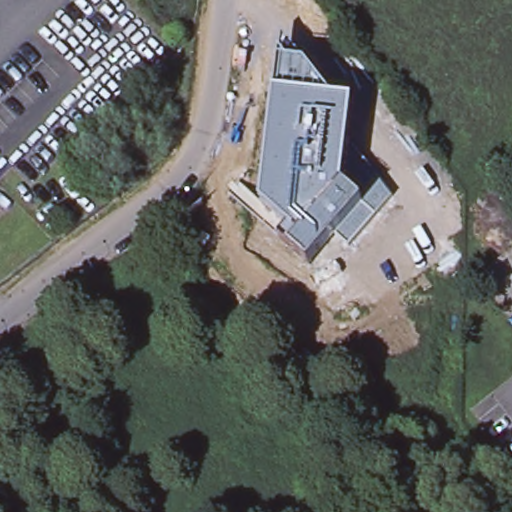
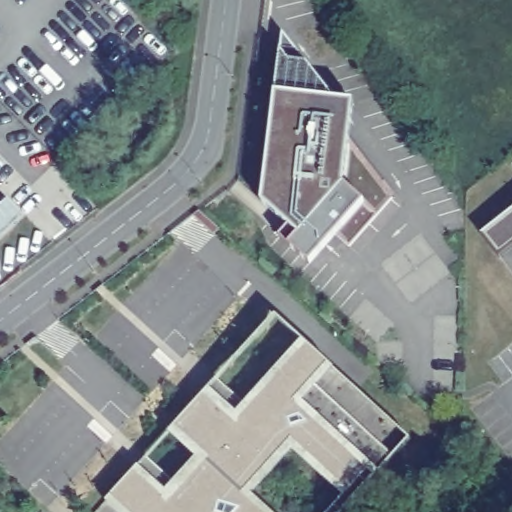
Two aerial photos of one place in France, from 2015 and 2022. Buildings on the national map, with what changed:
new [(272,33),(325,100),(344,103),(340,140),(270,51),(272,33)]
unchanged [(270,51),(340,140),(383,196),(339,247),(325,235),(315,247),(299,265),(269,238),(278,227),(251,203),(255,170),(270,51)]
new [(481,235),(512,210),(512,244),(497,255),(481,235)]
new [(302,341),(333,370),(409,438),(379,472),(343,512),(329,512),(343,497),(292,451),(251,495),(270,512),(116,512),(105,502),(138,466),(165,491),(196,458),(168,432),(179,394),(209,389),(236,415),(302,341)]

